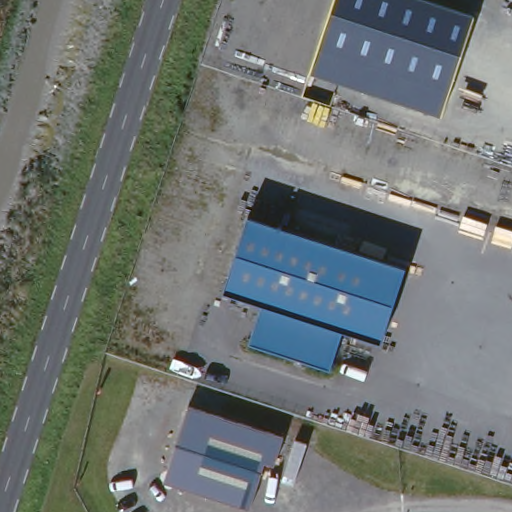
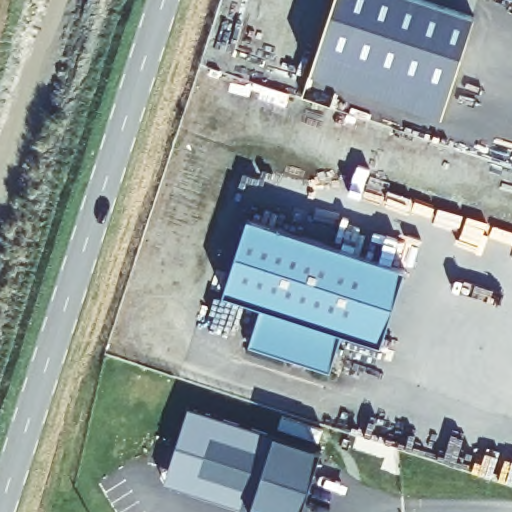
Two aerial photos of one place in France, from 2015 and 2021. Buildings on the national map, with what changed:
unchanged [(422,0),(470,16),(445,92),(313,49),(329,0),(422,0)]
unchanged [(445,92),(438,116),(306,73),(313,49),(445,92)]
unchanged [(404,273),(380,350),(341,337),(329,377),(247,351),(260,311),(221,298),(246,222),(404,273)]
unchanged [(167,467),(188,402),(283,433),(274,462),(264,459),(249,507),(175,482),(163,479),(167,467)]
new [(324,428),(316,447),(322,450),(302,512),(266,512),(249,507),(264,459),(274,462),(283,433),(276,431),(282,414),(324,428)]

